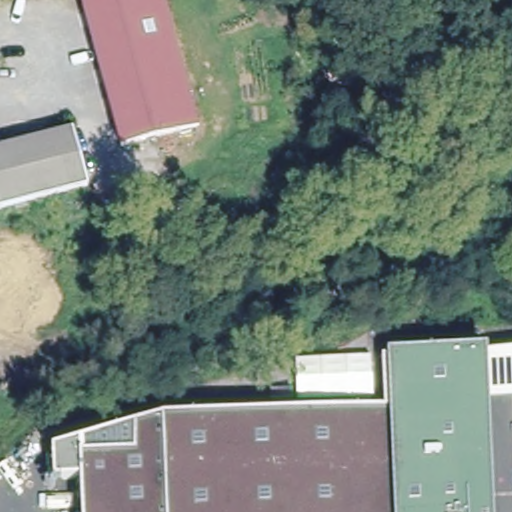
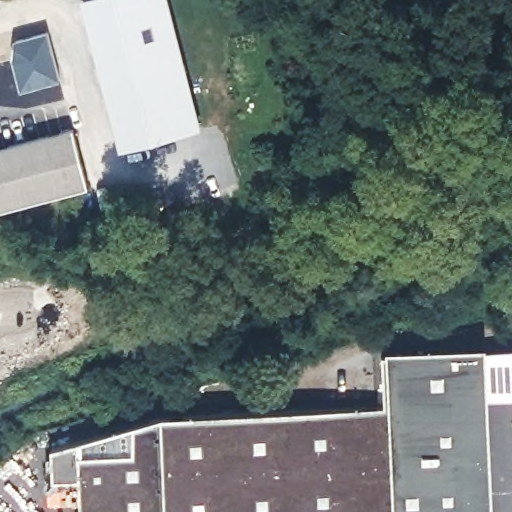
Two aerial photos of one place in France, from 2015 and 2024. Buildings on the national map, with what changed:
unchanged [(195,126),(116,145),(87,24),(81,0),(164,0),(165,6),(195,126)]
new [(12,40),(48,31),(60,79),(20,91),(12,61),(12,40)]
unchanged [(0,207),(0,148),(75,130),(88,185),(0,207)]
unchanged [(512,397),(488,398),(486,349),(512,348),(512,397)]
unchanged [(84,477),(57,478),(55,446),(166,412),(388,403),(386,353),(486,349),(488,398),(493,512),(85,512),(84,477)]

